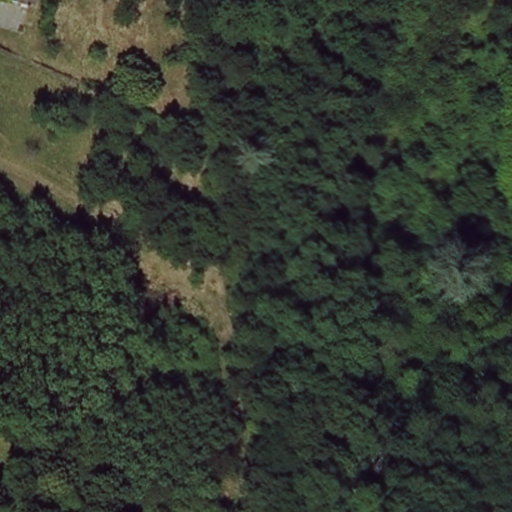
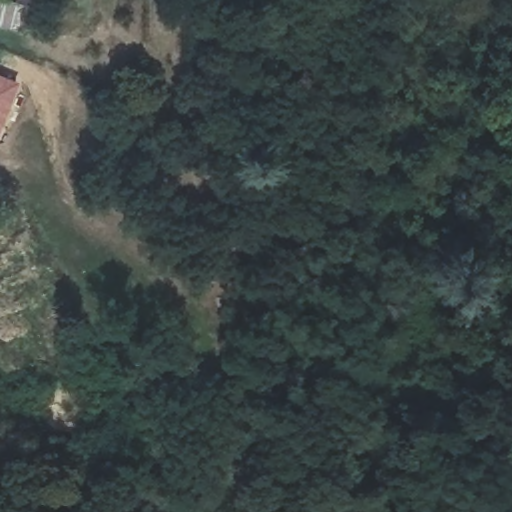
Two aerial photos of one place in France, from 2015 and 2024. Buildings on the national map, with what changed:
unchanged [(20,22),(0,17),(0,0),(26,0),(20,22)]
new [(0,133),(0,73),(18,81),(0,133)]

